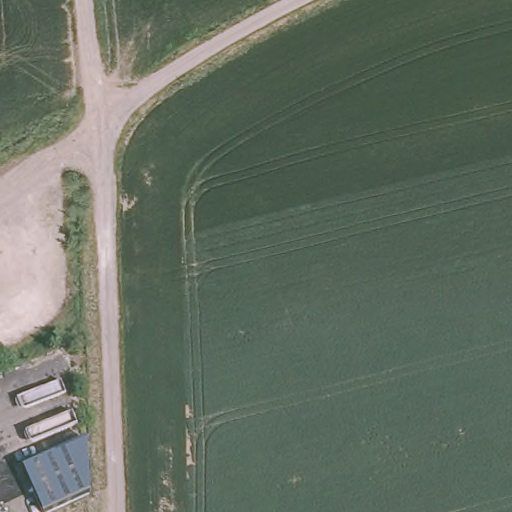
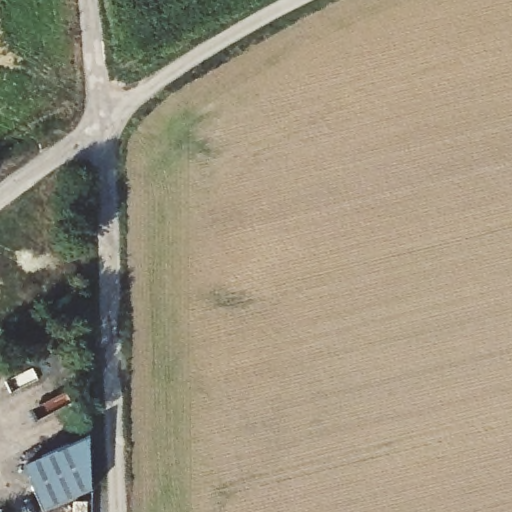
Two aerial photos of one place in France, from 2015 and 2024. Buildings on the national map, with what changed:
unchanged [(90,492),(45,512),(43,512),(22,467),(89,438),(90,492)]

